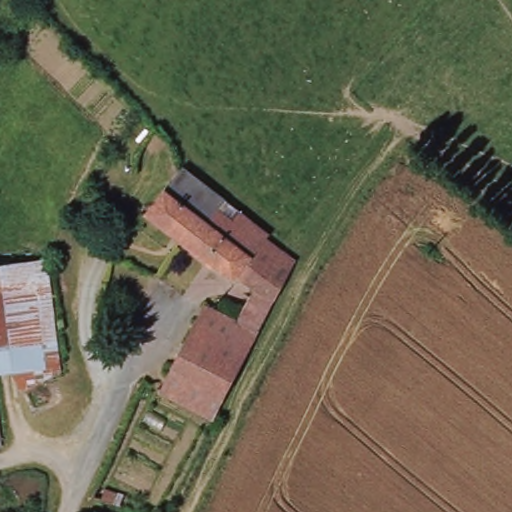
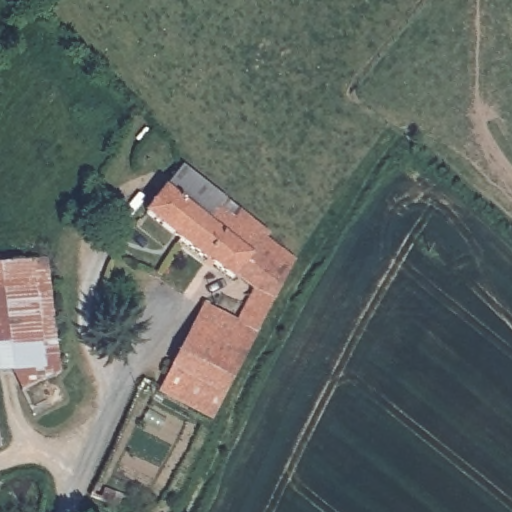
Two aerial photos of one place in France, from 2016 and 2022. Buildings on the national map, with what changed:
unchanged [(149,215),(185,170),(187,169),(228,200),(225,205),(209,226),(209,225),(200,219),(181,243),(149,215)]
unchanged [(252,348),(214,418),(159,387),(208,303),(238,318),(255,288),(236,275),(233,278),(210,260),(207,264),(181,243),(200,219),(209,225),(209,226),(225,205),(235,214),(278,248),(294,262),(273,309),(252,348)]
unchanged [(55,267),(62,381),(25,394),(14,376),(0,376),(0,270),(55,267)]
unchanged [(104,491),(111,478),(124,484),(118,497),(108,493),(104,491)]

